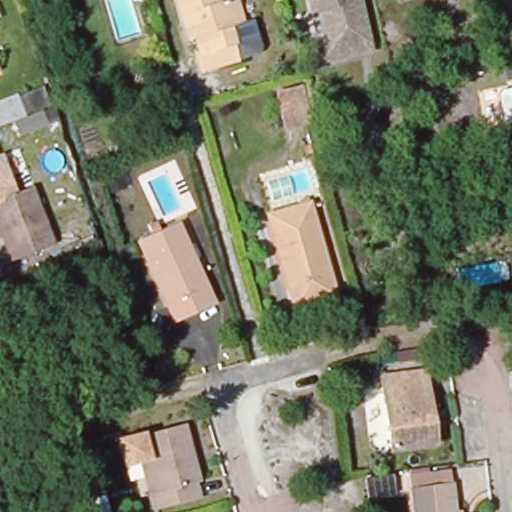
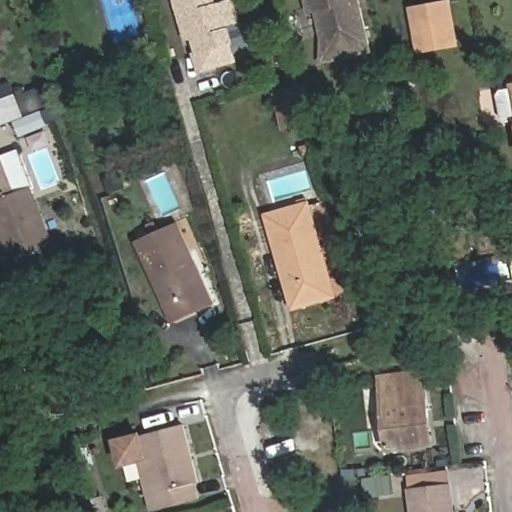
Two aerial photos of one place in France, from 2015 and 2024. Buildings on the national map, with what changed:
unchanged [(235,63),(204,71),(194,42),(186,44),(181,26),(174,0),(217,0),(219,6),(227,6),(234,30),(239,47),(231,51),(235,63)]
unchanged [(330,41),(323,14),(316,16),(313,0),(364,0),(375,48),(376,55),(327,66),(330,41)]
new [(448,1),(452,26),(455,44),(418,49),(411,8),(418,6),(448,1)]
unchanged [(43,86),(50,104),(54,103),(60,120),(20,136),(14,121),(0,127),(0,98),(15,91),(17,96),(43,86)]
unchanged [(278,95),(305,91),(311,125),(286,132),(278,95)]
unchanged [(510,126),(505,102),(509,96),(512,96),(512,127),(510,126)]
unchanged [(15,186),(25,183),(30,198),(38,196),(56,251),(17,265),(9,242),(0,245),(0,152),(1,152),(15,186)]
unchanged [(271,218),(310,206),(338,295),(300,307),(285,256),(281,241),(277,242),(271,218)]
unchanged [(156,275),(142,247),(182,228),(220,306),(187,321),(179,324),(156,275)]
unchanged [(430,445),(395,449),(385,378),(427,372),(433,416),(437,444),(430,445)]
unchanged [(120,468),(114,444),(180,427),(195,483),(190,485),(194,501),(152,512),(150,512),(146,498),(138,463),(120,468)]
new [(390,475),(392,494),(363,498),(361,479),(390,475)]
unchanged [(415,493),(454,488),(458,512),(419,512),(415,493)]

